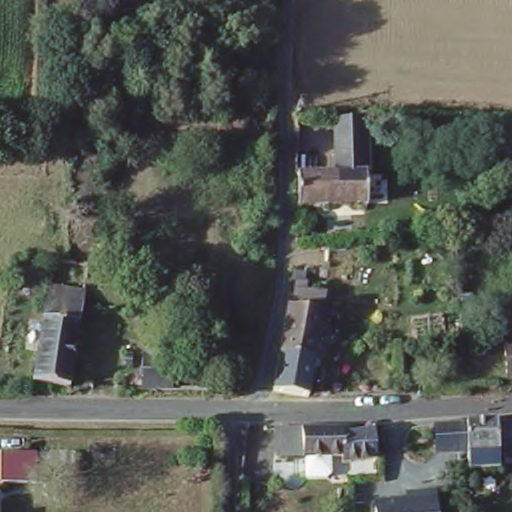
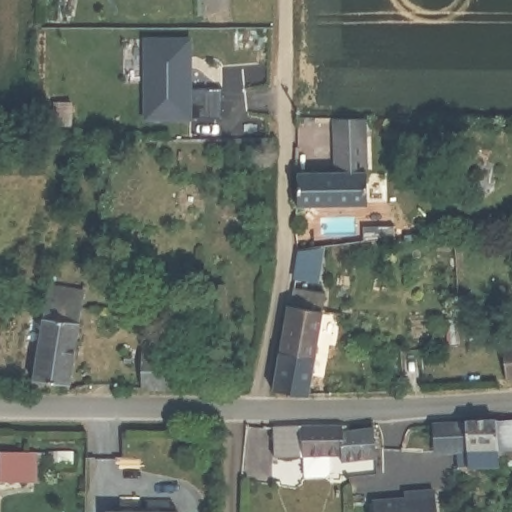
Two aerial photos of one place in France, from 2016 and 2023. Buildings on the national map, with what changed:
new [(192,119),(143,119),(143,37),(192,38),(192,119)]
unchanged [(297,205),(297,170),(331,166),(331,116),(365,115),(365,206),(297,205)]
unchanged [(306,218),(305,226),(299,226),(300,217),(306,218)]
demolished [(197,312),(196,280),(220,283),(222,311),(197,312)]
unchanged [(285,305),(291,305),(294,280),(323,286),(308,395),(285,394),(273,392),(285,305)]
unchanged [(72,386),(30,381),(44,293),(81,299),(72,386)]
demolished [(412,317),(446,315),(450,343),(415,346),(412,317)]
unchanged [(505,336),(512,336),(512,370),(507,370),(505,336)]
unchanged [(144,350),(172,350),(171,383),(141,383),(144,350)]
unchanged [(131,354),(130,363),(123,363),(123,354),(131,354)]
unchanged [(481,459),(452,462),(452,448),(421,451),(420,423),(450,420),(450,419),(503,415),(505,445),(500,445),(501,458),(481,459)]
unchanged [(342,458),(342,452),(274,457),(272,425),(341,420),(341,424),(367,424),(369,456),(342,458)]
unchanged [(43,455),(42,485),(0,485),(0,455),(43,455)]
unchanged [(353,469),(353,478),(346,479),(345,470),(353,469)]
unchanged [(434,484),(435,494),(437,512),(379,512),(378,500),(407,497),(406,487),(434,484)]

